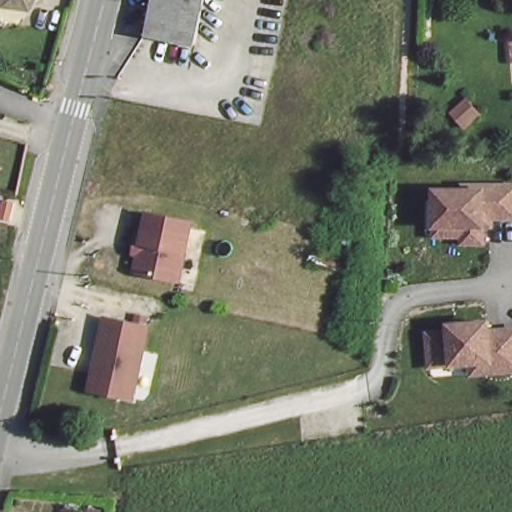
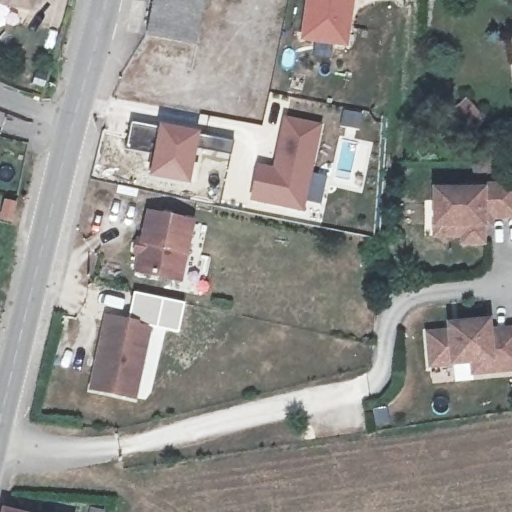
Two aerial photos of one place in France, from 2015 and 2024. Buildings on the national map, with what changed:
unchanged [(12,3),(5,0),(40,0),(37,5),(12,3)]
unchanged [(155,0),(206,0),(203,14),(195,55),(145,45),(155,0)]
new [(306,0),(354,0),(347,46),(300,40),(306,0)]
unchanged [(463,99),(477,114),(462,127),(449,112),(463,99)]
new [(257,164),(272,167),(284,116),(321,125),(302,211),(249,200),(257,164)]
new [(233,139),(230,155),(197,150),(190,185),(147,177),(152,153),(125,148),(130,120),(158,123),(200,131),(233,139)]
unchanged [(437,216),(437,182),(465,181),(465,177),(512,177),(512,208),(494,208),(494,216),(485,216),(485,233),(465,233),(465,227),(437,227),(437,216)]
unchanged [(178,282),(135,274),(137,256),(132,255),(135,247),(135,243),(140,243),(145,215),(162,218),(190,223),(178,282)]
unchanged [(0,306),(2,307),(0,314),(0,306)]
unchanged [(148,329),(132,400),(90,391),(107,320),(148,329)]
unchanged [(453,333),(452,326),(492,322),(492,332),(512,330),(512,370),(495,372),(494,361),(434,366),(432,335),(453,333)]
unchanged [(12,511),(17,512),(12,512),(12,511)]

